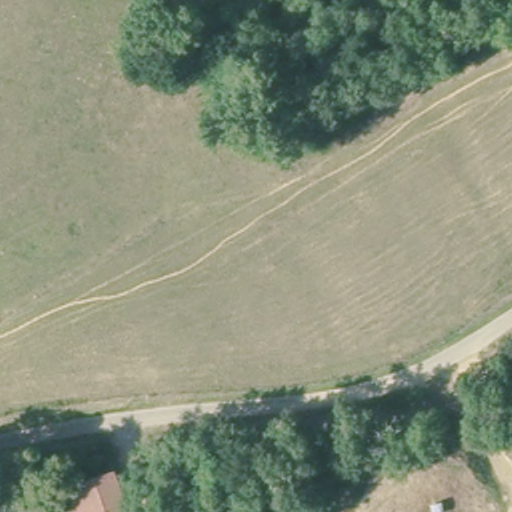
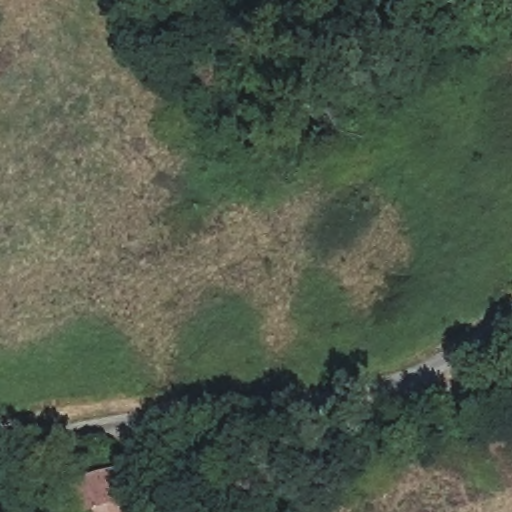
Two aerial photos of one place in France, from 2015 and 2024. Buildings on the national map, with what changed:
unchanged [(110,503),(113,512),(76,512),(75,510),(110,503)]

